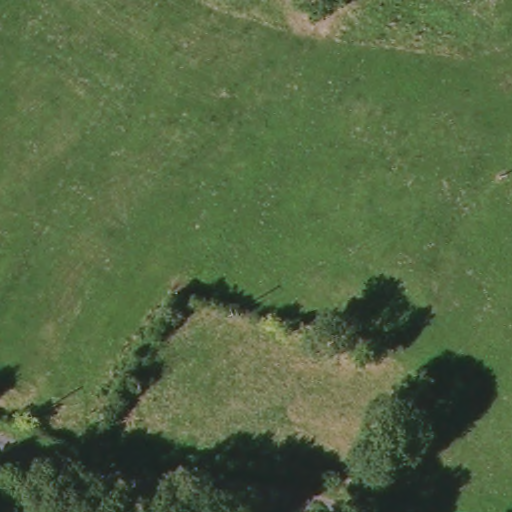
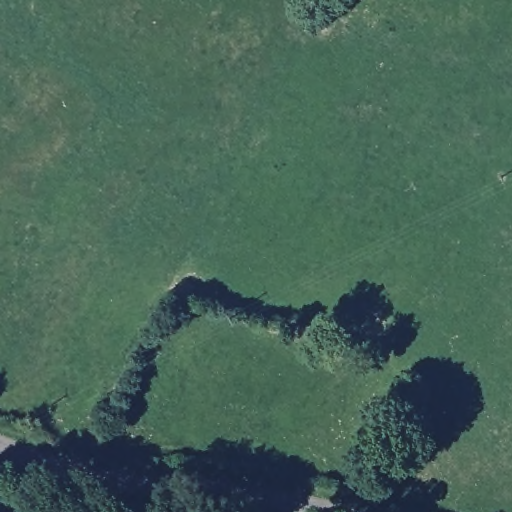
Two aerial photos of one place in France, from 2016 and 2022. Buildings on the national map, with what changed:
[]

